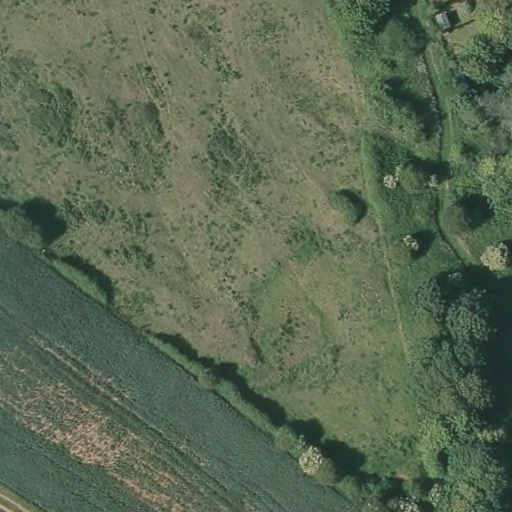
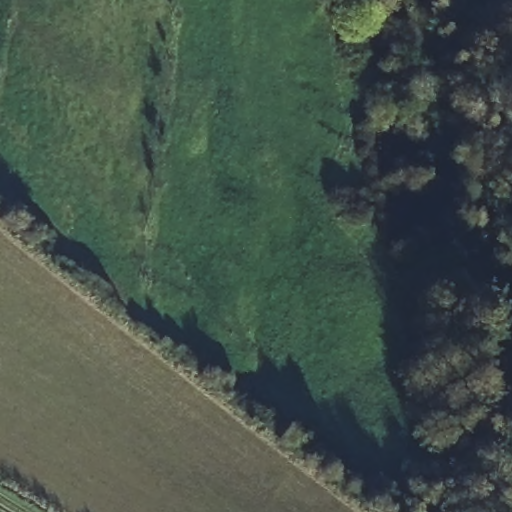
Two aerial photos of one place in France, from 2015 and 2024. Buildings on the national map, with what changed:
[]

